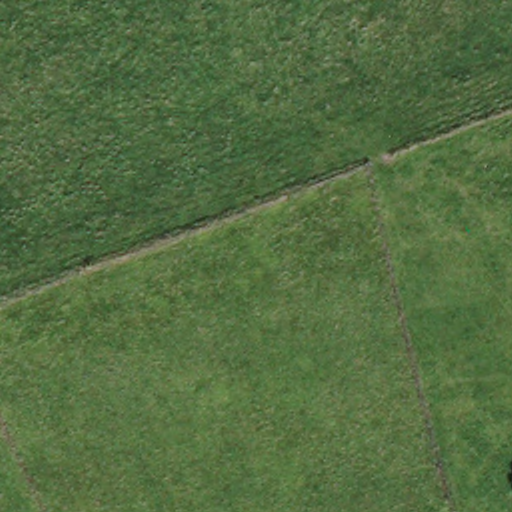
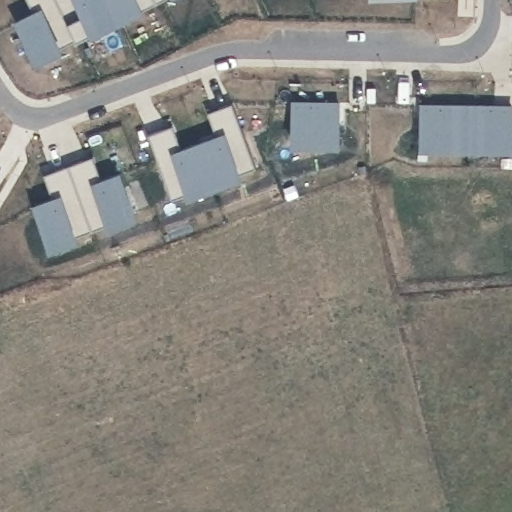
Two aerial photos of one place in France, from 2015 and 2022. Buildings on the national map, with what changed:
new [(33,57),(14,19),(37,7),(34,0),(147,0),(33,57)]
new [(37,7),(30,11),(25,0),(34,0),(37,7)]
new [(337,144),(293,143),(294,102),(338,103),(337,144)]
new [(172,199),(148,135),(165,129),(174,153),(223,135),(216,137),(207,113),(215,111),(231,104),(255,168),(172,199)]
new [(510,148),(420,146),(421,106),(510,107),(510,148)]
new [(181,151),(174,153),(165,129),(172,126),(181,151)]
new [(134,212),(51,243),(37,204),(61,195),(54,198),(45,173),(52,171),(86,158),(93,155),(102,179),(120,173),(134,212)]

